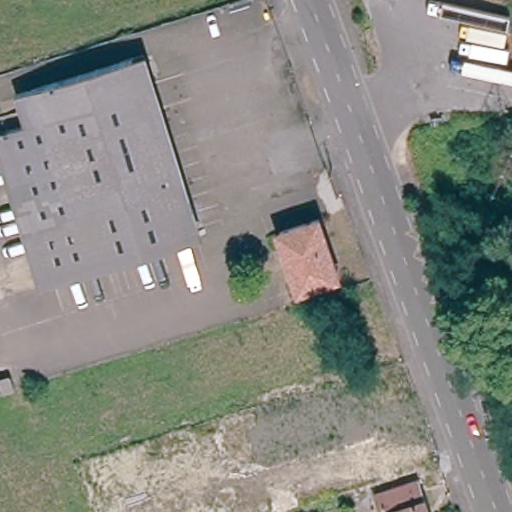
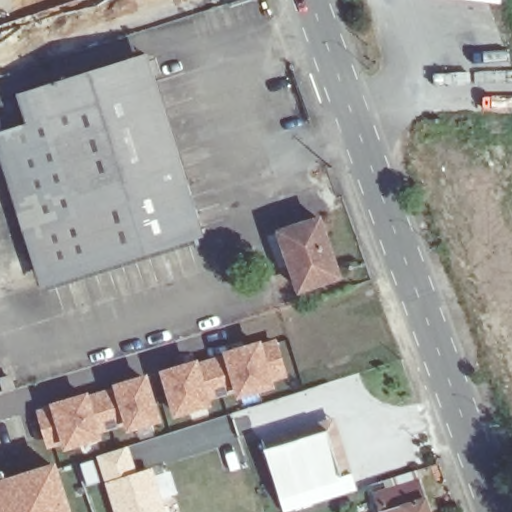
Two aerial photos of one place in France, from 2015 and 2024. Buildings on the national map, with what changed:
unchanged [(136,63),(176,181),(191,227),(104,255),(96,258),(39,95),(136,63)]
unchanged [(96,258),(56,271),(11,131),(37,120),(30,98),(39,95),(96,258)]
unchanged [(325,217),(343,276),(303,289),(285,229),(325,217)]
new [(261,341),(275,337),(287,376),(272,380),(274,388),(235,399),(234,392),(209,400),(211,406),(173,418),(159,370),(261,341)]
new [(50,405),(49,402),(87,391),(89,395),(113,387),(111,383),(146,373),(161,422),(127,433),(124,424),(100,432),(102,439),(62,451),(61,444),(46,449),(35,409),(50,405)]
demolished [(315,413),(312,400),(334,392),(338,401),(379,388),(395,431),(331,452),(327,440),(314,445),(305,417),(315,413)]
new [(284,512),(265,451),(262,441),(334,418),(350,474),(356,492),(289,512),(284,512)]
demolished [(223,425),(232,453),(220,456),(211,429),(223,425)]
new [(153,466),(167,512),(114,512),(96,455),(129,445),(136,471),(153,466)]
new [(72,512),(0,512),(0,480),(57,462),(72,512)]
demolished [(263,488),(297,476),(306,504),(283,512),(224,512),(223,511),(234,507),(266,496),(263,488)]
unchanged [(389,508),(382,489),(419,476),(433,512),(384,512),(384,510),(389,508)]

